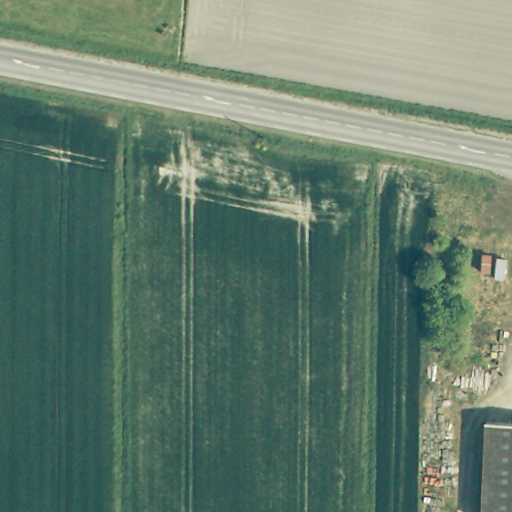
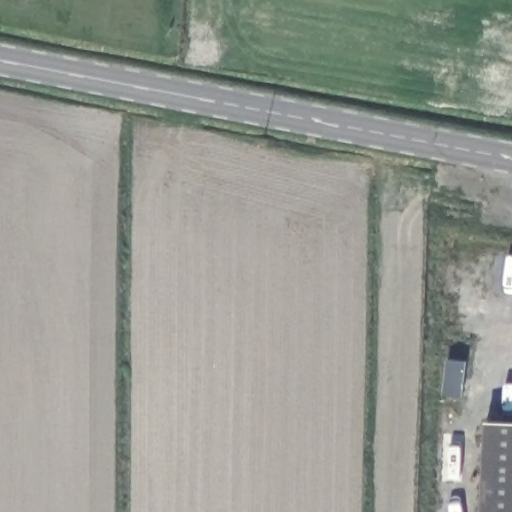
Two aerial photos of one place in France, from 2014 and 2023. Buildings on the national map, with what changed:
unchanged [(457,271),(445,271),(446,247),(458,247),(457,271)]
unchanged [(512,425),(512,512),(483,512),(487,424),(512,425)]

